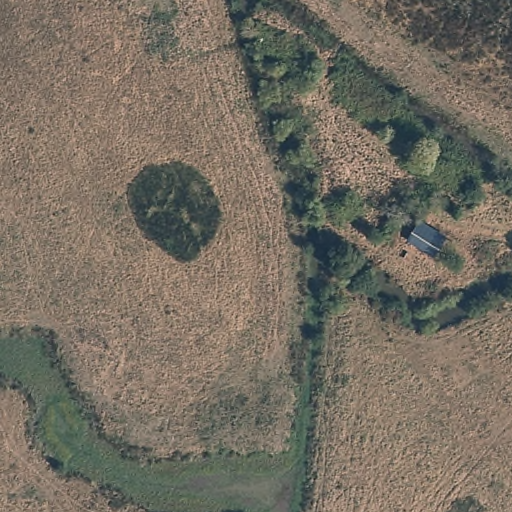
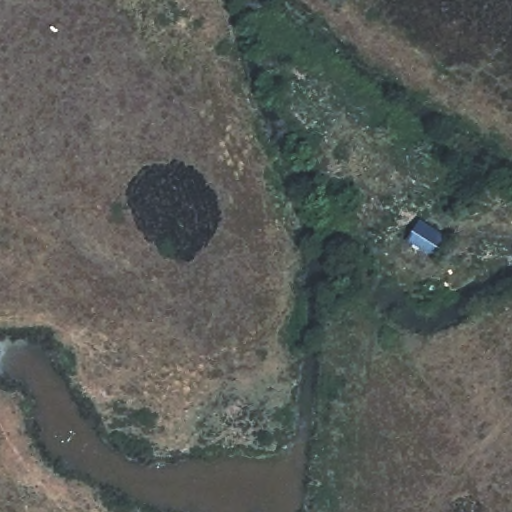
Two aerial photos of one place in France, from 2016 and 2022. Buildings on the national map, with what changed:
unchanged [(441,229),(425,249),(407,239),(421,218),(441,229)]

